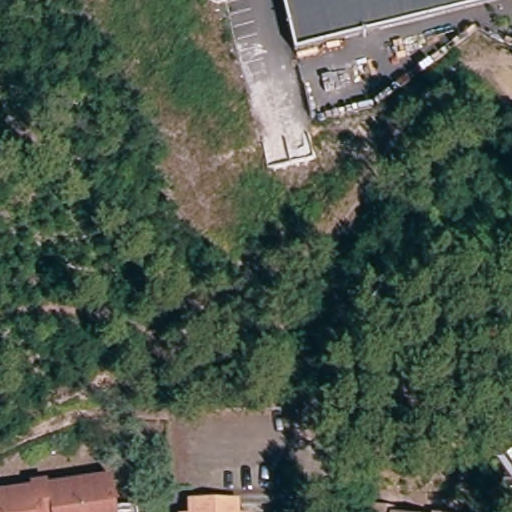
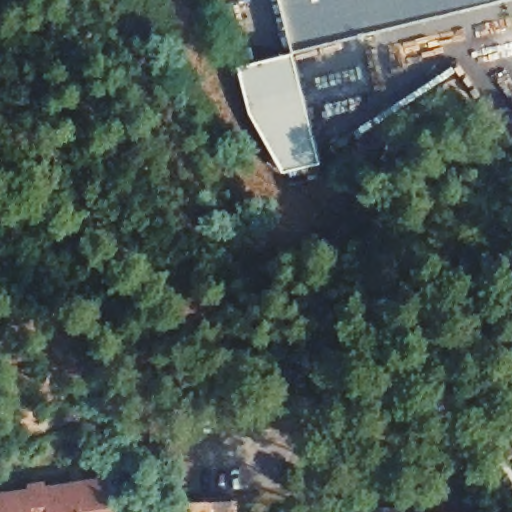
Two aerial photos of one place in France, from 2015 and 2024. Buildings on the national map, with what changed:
unchanged [(282,0),(507,0),(295,51),(282,0)]
new [(321,163),(282,170),(249,111),(238,65),(293,53),(321,163)]
unchanged [(117,512),(0,512),(0,494),(112,477),(117,512)]
unchanged [(383,506),(405,509),(405,512),(383,512),(383,506)]
unchanged [(237,507),(238,512),(190,512),(189,508),(237,507)]

